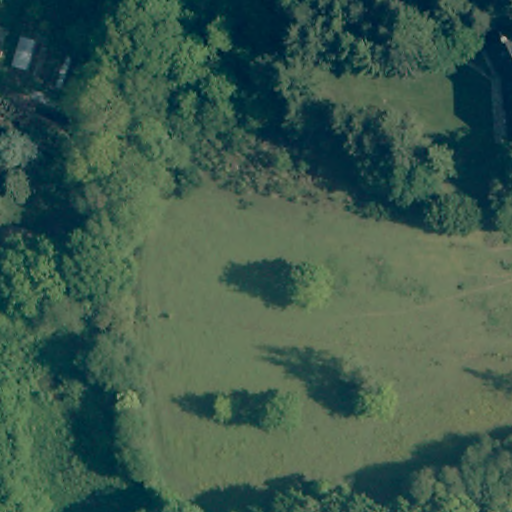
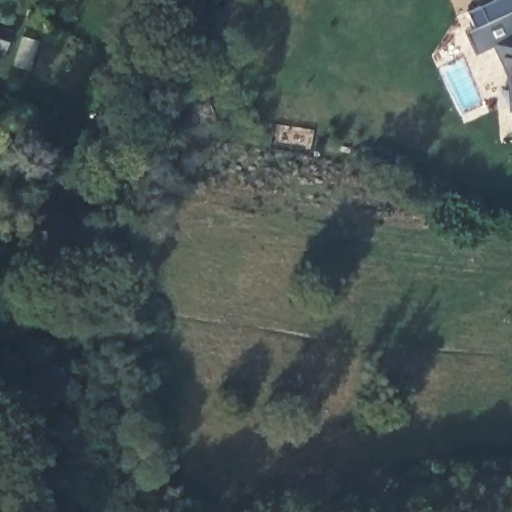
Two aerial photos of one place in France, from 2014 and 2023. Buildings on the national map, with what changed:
new [(510,34),(485,46),(475,54),(465,34),(475,29),(467,12),(494,0),(512,0),(512,35),(510,34)]
unchanged [(511,113),(510,82),(505,82),(498,76),(485,46),(510,34),(512,35),(512,113),(511,113)]

